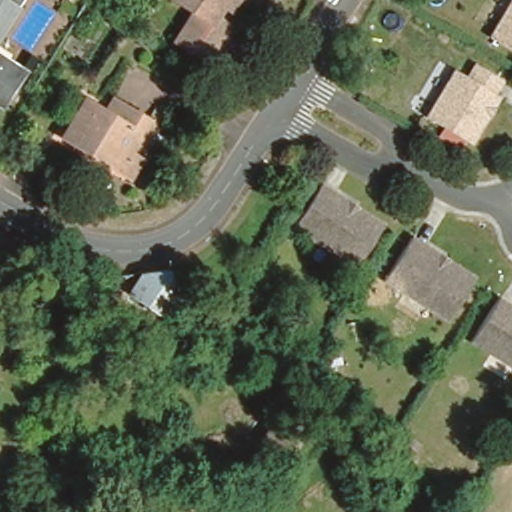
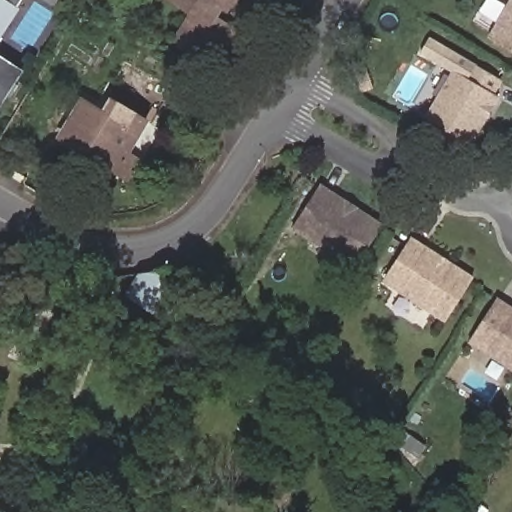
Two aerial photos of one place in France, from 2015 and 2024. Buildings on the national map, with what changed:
unchanged [(19,3),(13,13),(0,34),(0,0),(21,0),(19,3)]
unchanged [(195,13),(175,0),(241,0),(240,2),(232,7),(224,5),(216,17),(239,30),(215,66),(178,41),(195,13)]
unchanged [(260,5),(253,0),(263,0),(260,5)]
unchanged [(490,30),(508,0),(512,0),(512,44),(490,30)]
unchanged [(478,117),(467,135),(422,110),(448,65),(461,71),(469,59),(495,74),(487,87),(493,91),(478,117)]
unchanged [(0,105),(0,64),(19,75),(0,105)]
unchanged [(121,181),(86,159),(51,140),(73,105),(95,117),(103,104),(136,125),(119,154),(130,161),(121,181)]
unchanged [(354,262),(293,221),(321,179),(338,190),(365,207),(382,219),(354,262)]
unchanged [(444,315),(382,275),(410,231),(428,243),(455,260),(472,272),(444,315)]
unchanged [(163,271),(166,274),(183,285),(160,320),(122,291),(133,274),(163,271)]
unchanged [(512,305),(512,366),(467,336),(495,293),(512,305)]
unchanged [(289,420),(270,447),(245,430),(264,402),(289,420)]

